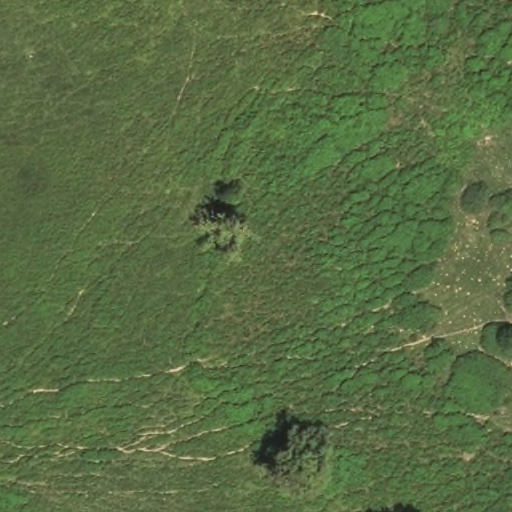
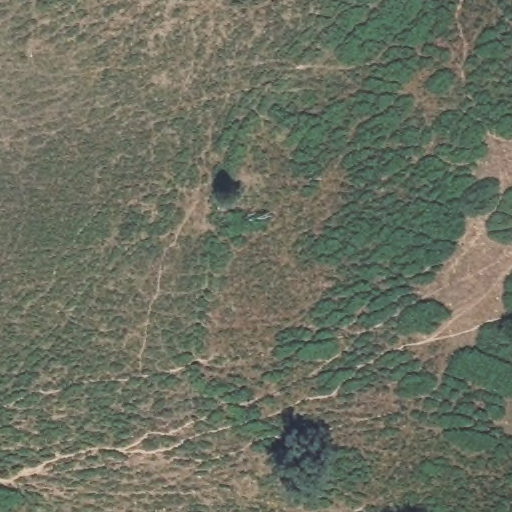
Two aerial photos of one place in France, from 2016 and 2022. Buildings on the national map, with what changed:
[]

